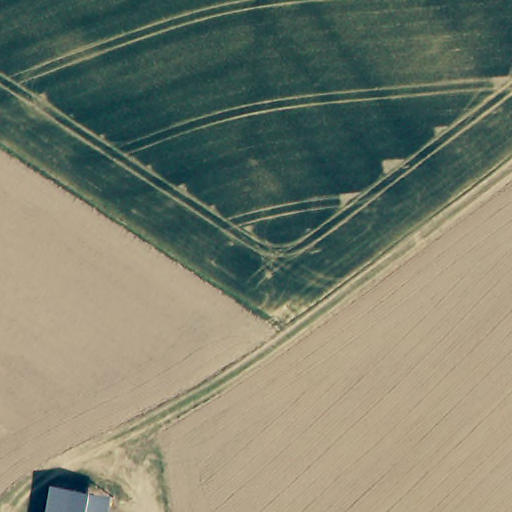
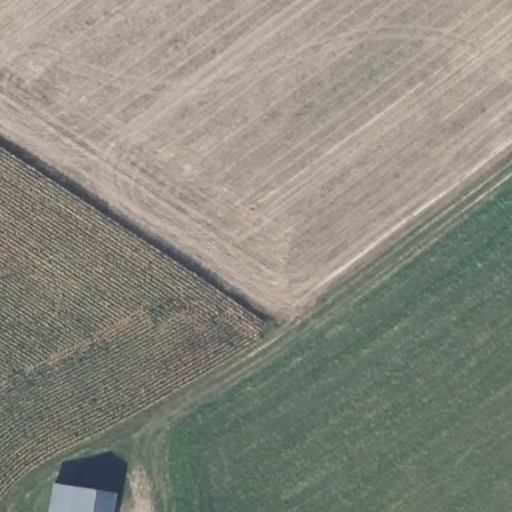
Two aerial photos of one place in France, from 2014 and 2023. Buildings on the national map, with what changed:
unchanged [(107,512),(47,512),(51,492),(109,503),(107,512)]

